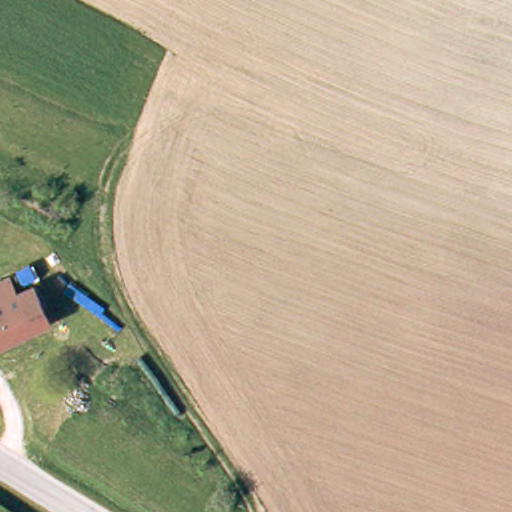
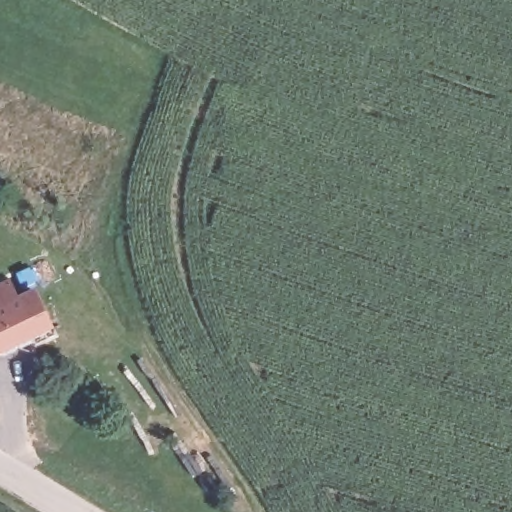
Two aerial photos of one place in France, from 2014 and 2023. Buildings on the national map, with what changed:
unchanged [(18,292),(36,284),(55,324),(0,348),(0,282),(11,277),(18,292)]

